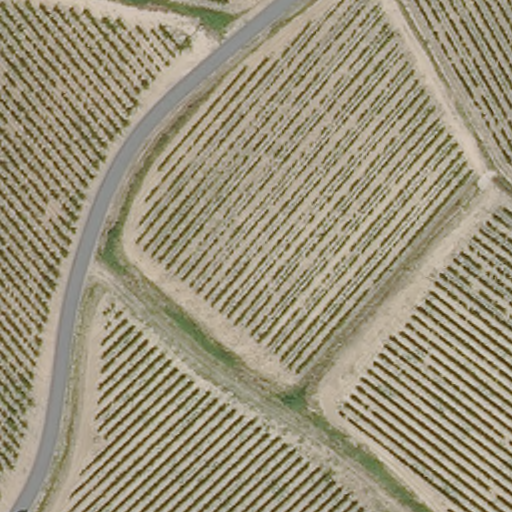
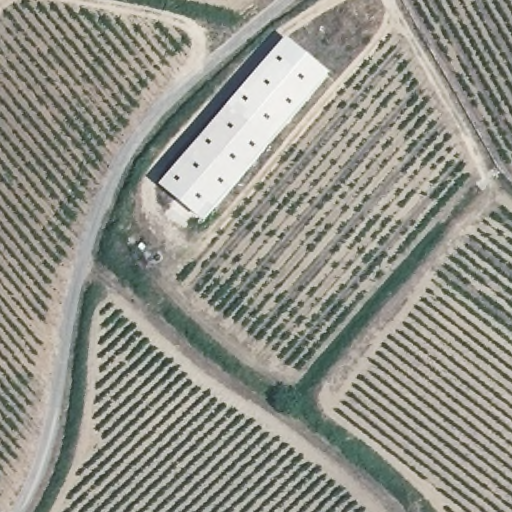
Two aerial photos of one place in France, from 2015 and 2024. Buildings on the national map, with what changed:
new [(333,76),(205,222),(162,187),(291,38),(333,76)]

